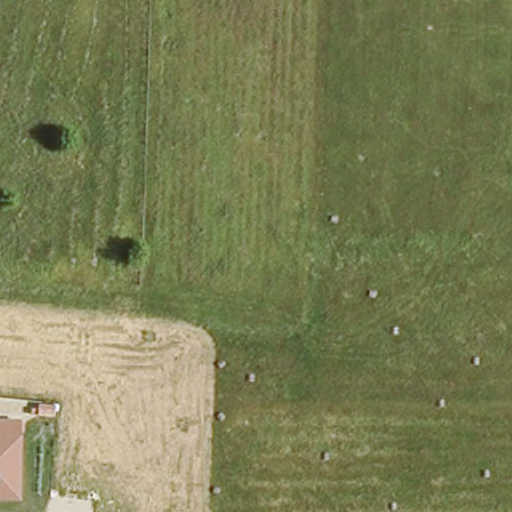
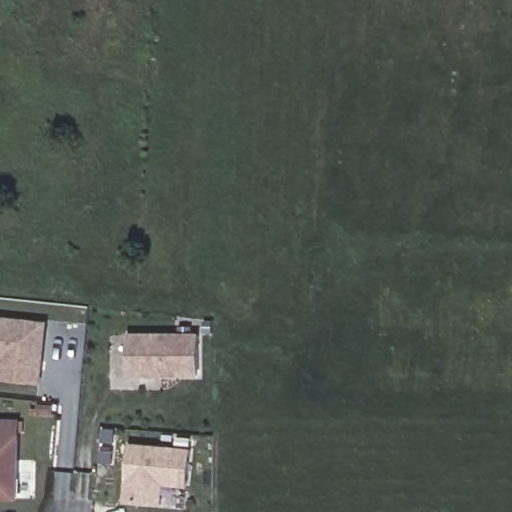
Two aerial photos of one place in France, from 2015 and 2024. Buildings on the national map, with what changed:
new [(0,380),(0,317),(46,321),(41,385),(0,380)]
new [(127,333),(199,333),(199,376),(127,376),(127,333)]
unchanged [(20,419),(20,501),(0,500),(0,419),(20,419)]
new [(163,506),(124,503),(129,443),(191,448),(188,488),(164,487),(163,506)]

